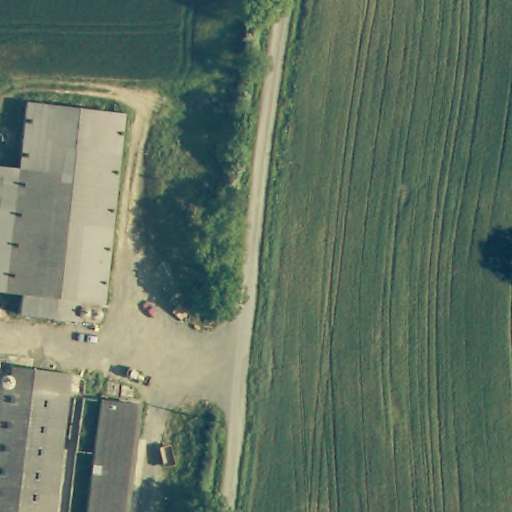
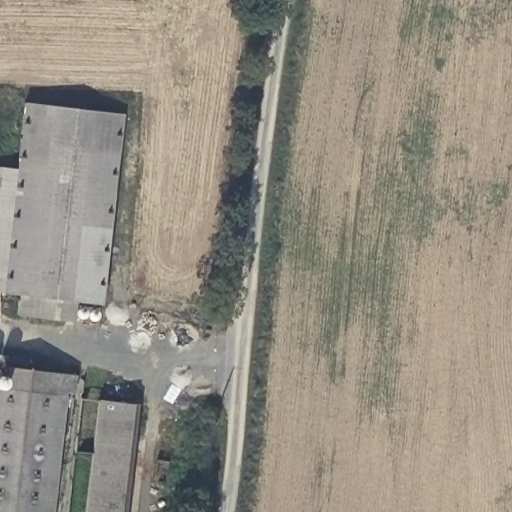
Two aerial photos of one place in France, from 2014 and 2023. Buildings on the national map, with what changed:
unchanged [(59,172),(19,167),(27,107),(122,118),(117,157),(115,178),(59,172)]
unchanged [(19,173),(19,167),(59,172),(115,178),(98,306),(73,303),(70,323),(14,315),(16,296),(2,294),(3,290),(19,173)]
unchanged [(3,290),(2,294),(0,294),(0,171),(19,173),(3,290)]
unchanged [(65,375),(71,375),(69,393),(63,392),(49,512),(0,512),(0,390),(1,390),(4,367),(65,375)]
unchanged [(136,404),(121,512),(82,512),(98,397),(136,404)]

